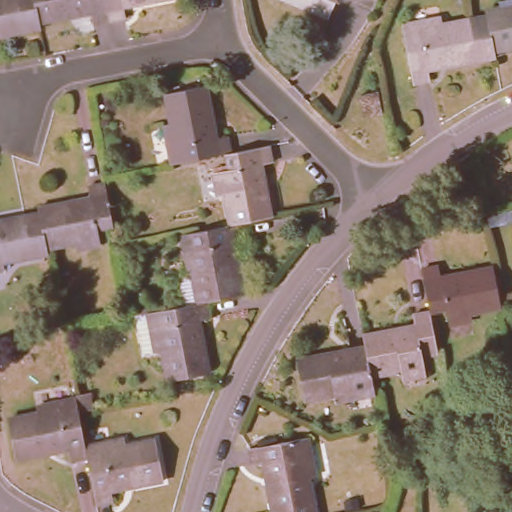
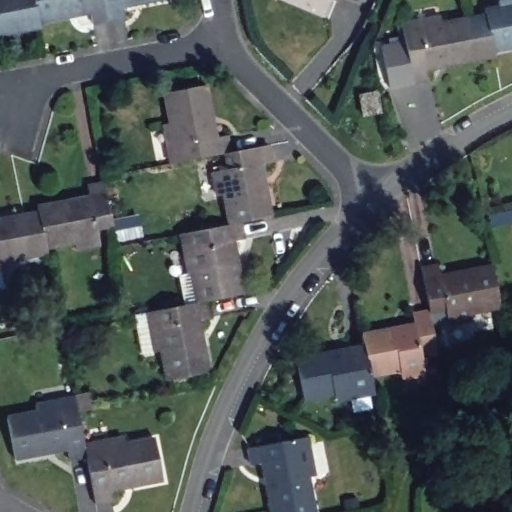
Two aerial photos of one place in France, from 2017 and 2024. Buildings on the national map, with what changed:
unchanged [(0,36),(0,0),(24,0),(25,6),(39,3),(43,21),(44,27),(0,36)]
unchanged [(96,21),(94,11),(43,21),(39,3),(25,6),(24,0),(110,0),(113,19),(96,21)]
unchanged [(128,5),(129,16),(113,19),(110,0),(156,0),(128,5)]
unchanged [(489,31),(474,35),(471,17),(485,14),(484,8),(512,3),(512,46),(493,50),(489,31)]
unchanged [(427,69),(429,79),(412,82),(402,23),(441,16),(442,22),(471,17),(474,35),(489,31),(493,50),(494,57),(427,69)]
unchanged [(173,167),(172,162),(171,163),(163,123),(171,122),(165,92),(206,84),(216,137),(226,135),(229,151),(225,152),(194,158),(196,163),(173,167)]
unchanged [(363,115),(359,94),(379,90),(383,112),(363,115)]
unchanged [(223,192),(216,194),(213,171),(228,168),(225,152),(229,151),(268,144),(271,161),(260,163),(271,215),(241,221),(228,223),(223,192)]
unchanged [(93,222),(95,239),(73,243),(71,237),(42,242),(39,226),(23,229),(19,208),(33,205),(33,200),(84,190),(83,180),(100,177),(108,220),(93,222)]
unchanged [(512,214),(489,219),(487,209),(512,204),(512,214)]
unchanged [(0,256),(0,211),(19,208),(23,229),(39,226),(42,242),(43,247),(0,256)]
unchanged [(189,275),(185,248),(183,232),(198,229),(228,223),(241,221),(244,237),(233,240),(243,294),(206,301),(184,305),(179,277),(189,275)]
unchanged [(469,308),(472,315),(448,318),(445,303),(429,305),(421,261),(437,259),(439,269),(492,259),(498,293),(499,302),(469,308)]
unchanged [(209,317),(199,319),(208,371),(167,379),(161,349),(154,351),(153,350),(143,352),(135,314),(184,305),(206,301),(209,317)]
unchanged [(421,350),(424,366),(401,371),(399,363),(370,369),(364,339),(362,328),(414,319),(412,309),(429,305),(437,348),(421,350)]
unchanged [(334,394),(334,388),(304,393),(296,352),(364,339),(370,369),(374,387),(334,394)]
unchanged [(62,448),(9,459),(2,417),(32,411),(31,404),(70,396),(69,394),(84,392),(87,408),(73,411),(79,444),(81,456),(64,460),(62,448)]
unchanged [(253,463),(249,446),(307,435),(314,476),(308,477),(314,512),(290,512),(290,510),(281,512),(272,512),(263,461),(253,463)]
unchanged [(119,436),(121,444),(151,438),(158,480),(106,490),(108,500),(90,503),(83,470),(81,456),(79,444),(119,436)]
unchanged [(290,512),(281,512),(290,510),(290,512)]

